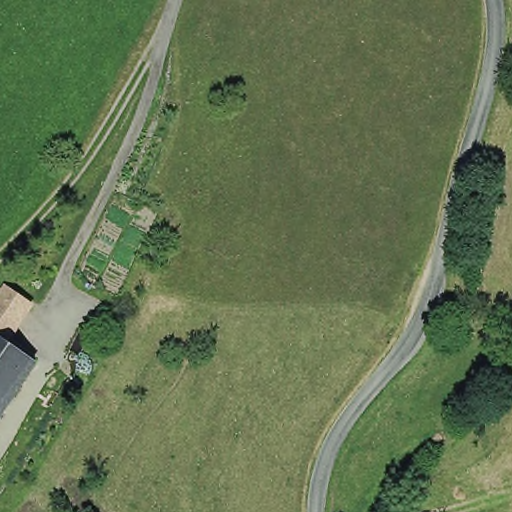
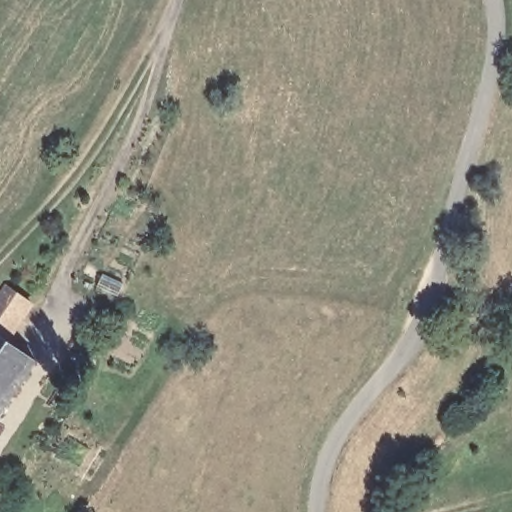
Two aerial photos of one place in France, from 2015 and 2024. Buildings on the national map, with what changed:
unchanged [(23,295),(0,333),(0,280),(23,295)]
unchanged [(30,355),(0,402),(0,401),(0,336),(30,355)]

